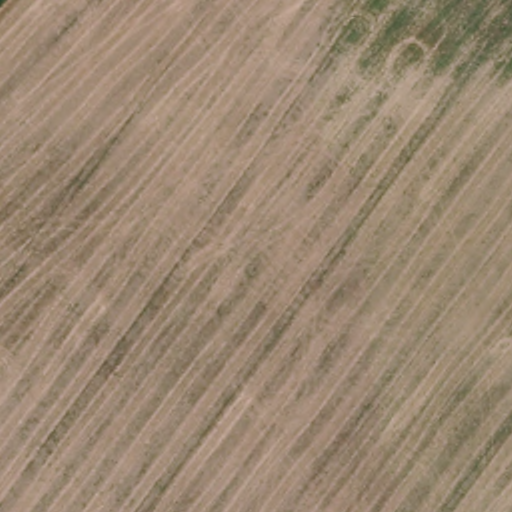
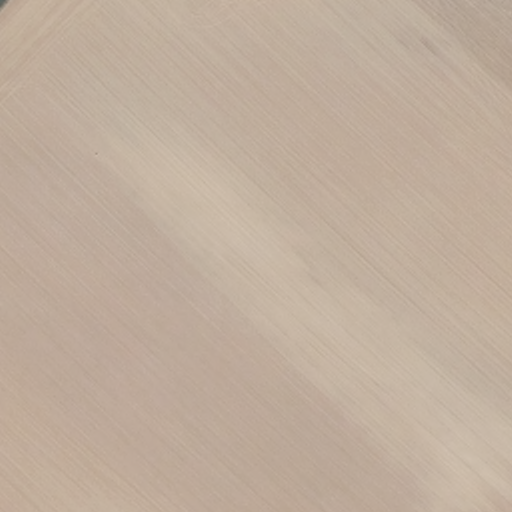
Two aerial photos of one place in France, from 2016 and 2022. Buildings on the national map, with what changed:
[]

